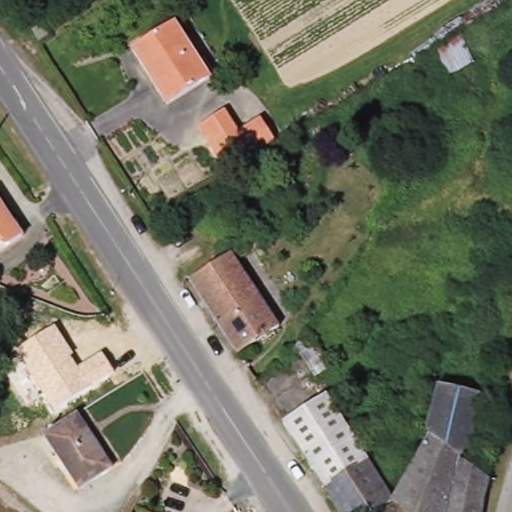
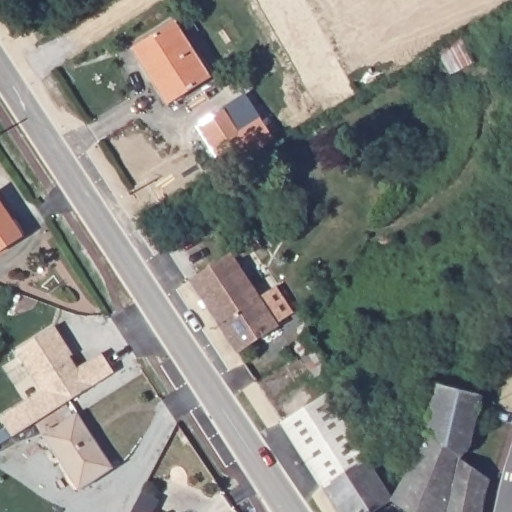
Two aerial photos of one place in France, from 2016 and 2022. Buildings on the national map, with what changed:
unchanged [(214,79),(171,106),(137,51),(179,23),(214,79)]
unchanged [(229,167),(201,124),(229,105),(243,128),(265,114),(278,136),(229,167)]
unchanged [(298,188),(281,199),(268,179),(284,168),(298,188)]
unchanged [(27,236),(0,254),(0,193),(15,217),(27,236)]
unchanged [(283,328),(242,356),(194,282),(257,240),(263,249),(241,263),(283,328)]
unchanged [(15,352),(56,328),(74,356),(71,359),(77,370),(103,355),(113,374),(84,392),(52,410),(15,352)]
unchanged [(330,370),(314,381),(296,355),(294,350),(305,333),(305,332),(330,370)]
unchanged [(433,436),(431,433),(435,415),(442,386),(487,397),(474,448),(464,460),(494,481),(487,512),(412,512),(397,501),(397,499),(397,498),(433,436)]
unchanged [(329,397),(356,437),(314,466),(288,425),(329,397)]
unchanged [(117,468),(83,490),(48,436),(81,413),(117,468)]
unchanged [(397,501),(379,512),(344,512),(314,466),(356,437),(397,499),(397,501)]

